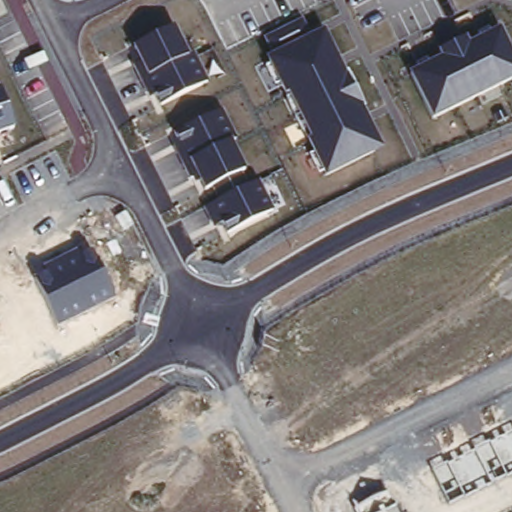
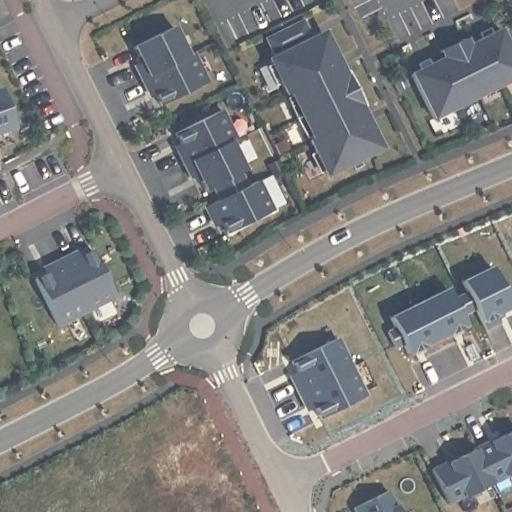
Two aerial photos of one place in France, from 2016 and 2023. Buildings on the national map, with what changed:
unchanged [(267,55),(271,52),(264,39),(305,21),(312,35),(325,31),(381,150),(325,177),(267,55)]
unchanged [(156,95),(149,98),(129,57),(136,54),(133,45),(174,27),(185,52),(193,48),(208,82),(161,106),(156,95)]
unchanged [(439,57),(436,51),(466,37),(468,42),(500,27),(512,53),(512,81),(433,121),(410,70),(439,57)]
unchanged [(5,85),(18,126),(0,132),(0,87),(5,85)]
unchanged [(223,224),(215,227),(205,205),(220,198),(214,187),(203,191),(197,177),(188,180),(169,133),(224,112),(237,140),(233,142),(251,185),(260,181),(273,212),(228,233),(223,224)]
unchanged [(35,273),(94,247),(117,298),(58,327),(35,273)]
new [(491,261),(511,304),(482,320),(462,277),(491,261)]
new [(447,285),(453,296),(459,293),(467,310),(460,312),(466,325),(408,355),(403,345),(395,348),(388,331),(395,327),(387,314),(447,285)]
new [(363,396),(321,417),(315,407),(307,410),(288,376),(297,371),(291,359),(336,337),(363,396)]
new [(449,459),(475,446),(474,445),(490,437),(491,438),(512,428),(512,471),(506,473),(506,472),(492,479),(493,481),(465,495),(464,493),(450,500),(433,466),(449,457),(449,459)]
new [(384,491),(391,505),(392,505),(396,512),(351,512),(349,508),(384,491)]

